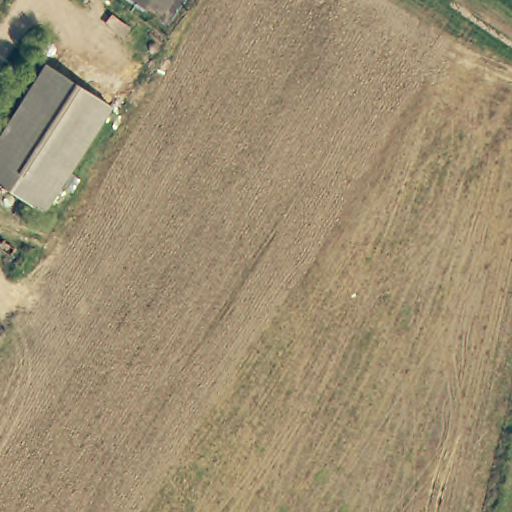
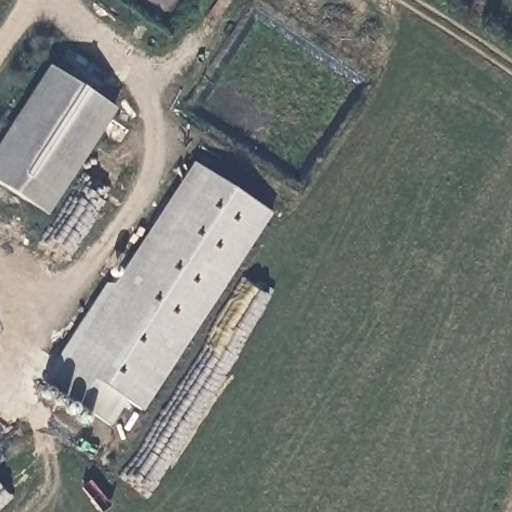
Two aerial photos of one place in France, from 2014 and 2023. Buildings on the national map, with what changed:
unchanged [(112,108),(44,212),(0,184),(0,137),(47,66),(112,108)]
new [(270,213),(141,410),(125,399),(110,424),(41,380),(104,283),(113,283),(191,161),(270,213)]

